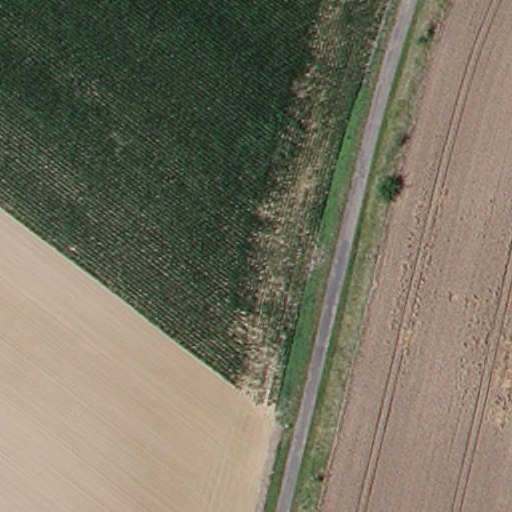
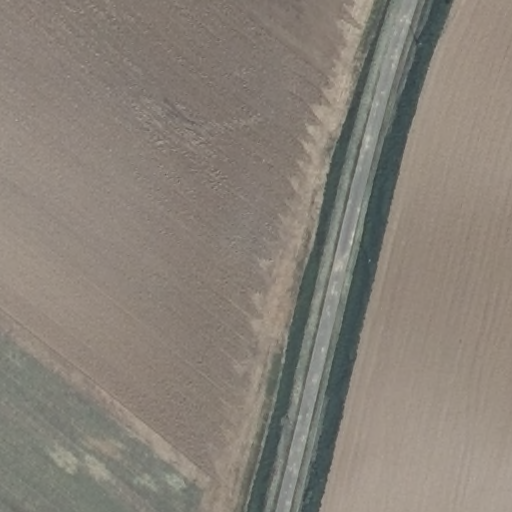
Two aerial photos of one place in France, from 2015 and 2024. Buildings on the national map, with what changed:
[]

